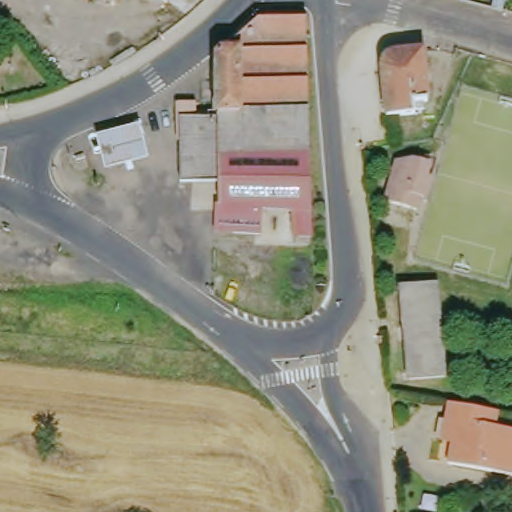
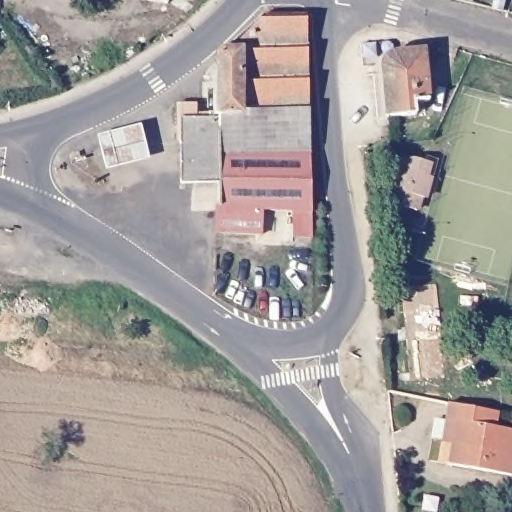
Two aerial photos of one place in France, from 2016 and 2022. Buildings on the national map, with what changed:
unchanged [(95,7),(95,0),(115,0),(115,9),(95,7)]
unchanged [(122,0),(168,0),(167,6),(122,0)]
unchanged [(491,14),(493,4),(501,5),(500,16),(491,14)]
unchanged [(290,239),(290,216),(263,214),(218,210),(218,186),(181,185),(180,144),(178,144),(176,107),(196,106),(197,119),(212,119),(212,113),(219,113),(218,61),(261,20),(306,19),(310,218),(310,240),(290,239)]
unchanged [(410,104),(410,115),(383,116),(377,63),(379,59),(380,57),(389,54),(417,51),(422,103),(410,104)]
unchanged [(148,163),(92,168),(90,141),(136,124),(148,163)]
unchanged [(432,160),(428,177),(427,177),(421,198),(418,198),(414,211),(385,203),(394,162),(408,159),(419,161),(420,157),(432,160)]
unchanged [(261,239),(214,238),(215,210),(218,210),(263,214),(261,239)]
unchanged [(439,383),(405,387),(397,292),(432,289),(439,383)]
unchanged [(492,414),(490,429),(512,434),(512,453),(445,439),(448,423),(439,421),(442,404),(492,414)]
unchanged [(512,453),(507,479),(440,465),(445,439),(512,453)]

